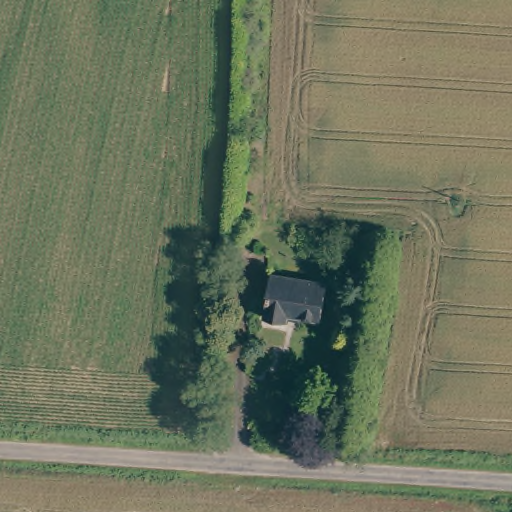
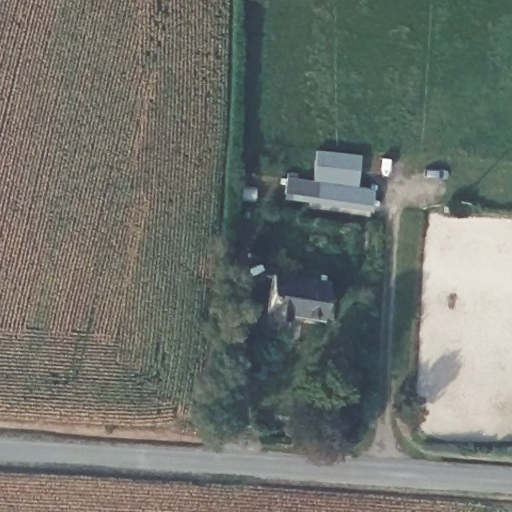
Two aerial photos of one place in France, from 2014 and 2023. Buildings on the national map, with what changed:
new [(357,187),(375,190),(371,212),(282,199),(286,177),(312,181),(316,150),(362,155),(357,187)]
unchanged [(326,279),(320,315),(286,309),(285,317),(263,313),(271,270),(326,279)]

